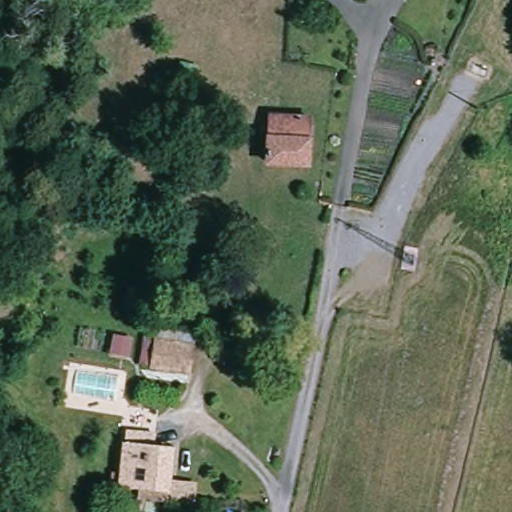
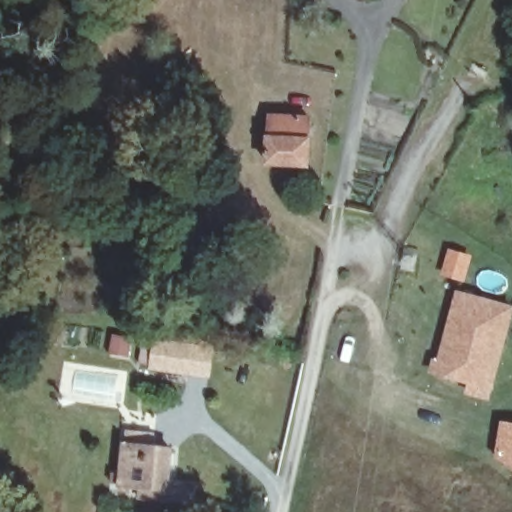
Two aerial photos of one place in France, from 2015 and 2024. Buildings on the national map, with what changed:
unchanged [(160,99),(159,112),(142,109),(144,96),(160,99)]
unchanged [(266,142),(266,137),(286,139),(287,123),(307,125),(305,166),(265,161),(266,142)]
new [(489,400),(464,392),(467,382),(427,372),(432,355),(437,357),(457,289),(512,305),(512,318),(489,400)]
new [(147,368),(152,337),(214,346),(211,377),(147,368)]
demolished [(176,370),(142,366),(144,340),(177,346),(176,370)]
unchanged [(122,418),(141,420),(141,434),(176,438),(172,470),(199,472),(197,492),(189,492),(126,487),(127,474),(112,472),(99,471),(100,462),(107,463),(112,418),(122,418)]
new [(500,419),(512,421),(512,469),(492,460),(500,419)]

